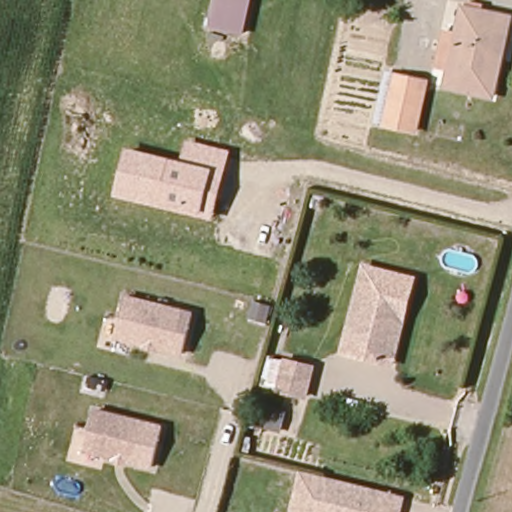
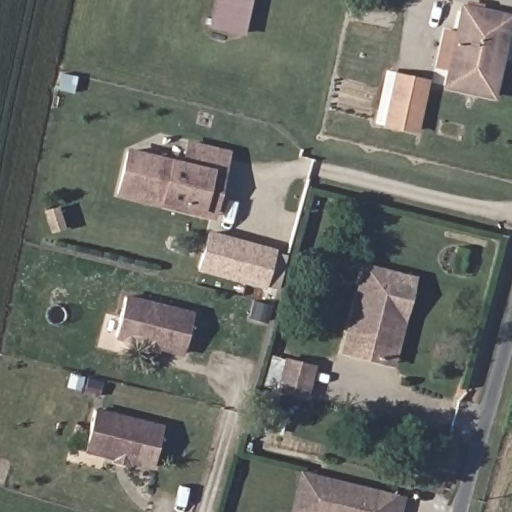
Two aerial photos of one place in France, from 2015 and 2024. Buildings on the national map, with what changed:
unchanged [(209,27),(215,0),(251,0),(244,34),(209,27)]
unchanged [(512,21),(512,35),(506,62),(509,62),(502,101),(455,90),(458,75),(448,73),(453,39),(465,41),(470,14),(512,21)]
unchanged [(395,75),(424,82),(415,126),(414,131),(383,124),(385,119),(395,75)]
unchanged [(213,220),(114,195),(125,147),(172,158),(181,161),(186,140),(231,150),(213,220)]
new [(287,254),(276,292),(197,270),(207,232),(287,254)]
unchanged [(380,363),(343,355),(364,268),(415,278),(405,322),(394,367),(380,363)]
unchanged [(127,295),(191,312),(179,356),(116,340),(127,295)]
unchanged [(315,369),(306,400),(278,392),(287,362),(315,369)]
unchanged [(85,454),(95,408),(162,426),(151,470),(85,454)]
unchanged [(403,497),(400,512),(289,512),(299,471),(403,497)]

